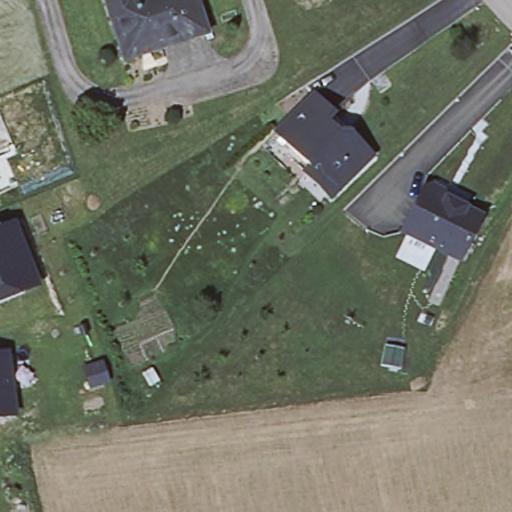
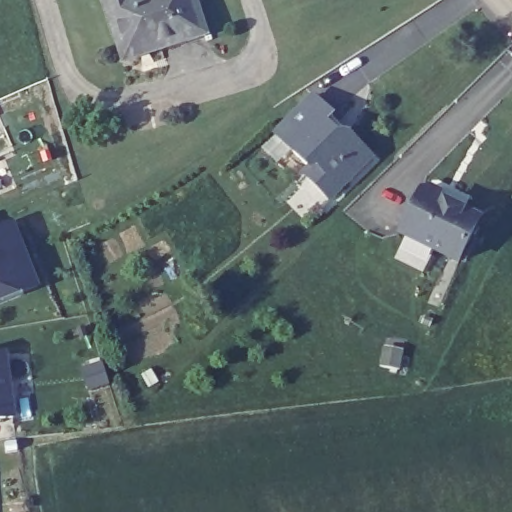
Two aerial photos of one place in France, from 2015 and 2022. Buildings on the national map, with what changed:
unchanged [(125,59),(106,0),(197,0),(207,33),(125,59)]
unchanged [(305,172),(310,167),(277,133),(314,96),(334,116),(332,117),(350,136),(371,157),(341,187),(330,198),(305,172)]
unchanged [(431,189),(442,194),(444,202),(479,219),(459,261),(402,233),(422,191),(431,189)]
unchanged [(0,227),(15,222),(41,290),(0,306),(0,227)]
unchanged [(16,418),(0,420),(0,355),(6,354),(16,418)]
unchanged [(102,362),(110,383),(90,389),(83,368),(102,362)]

